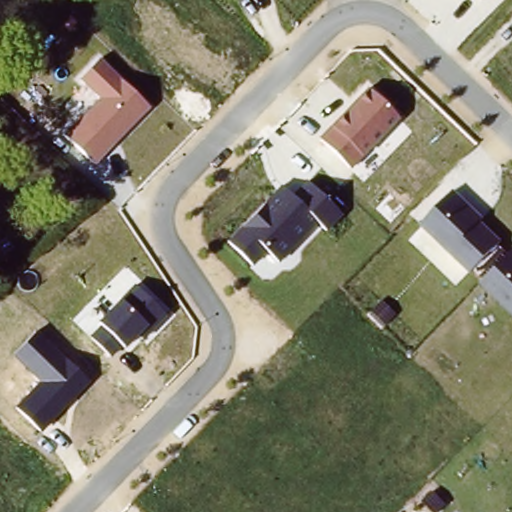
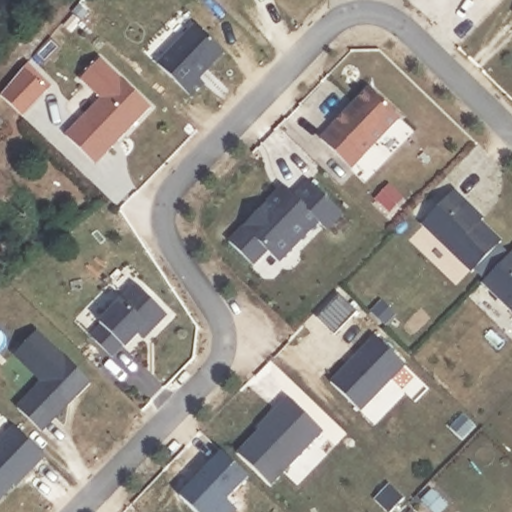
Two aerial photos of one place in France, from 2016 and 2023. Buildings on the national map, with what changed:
new [(198,26),(226,54),(201,80),(206,85),(194,98),(159,66),(198,26)]
unchanged [(149,107),(95,165),(64,133),(98,99),(79,78),(100,58),(149,107)]
unchanged [(399,118),(349,164),(319,135),(366,87),(399,118)]
unchanged [(266,202),(271,207),(288,190),(296,197),(313,182),(344,213),(327,230),(318,222),(279,263),(267,252),(254,266),(226,241),(266,202)]
unchanged [(453,187),(484,217),(482,221),(502,239),(469,273),(419,225),(453,187)]
unchanged [(13,244),(0,255),(0,238),(4,234),(13,244)]
unchanged [(512,254),(512,310),(484,282),(512,254)]
unchanged [(88,336),(102,323),(100,321),(136,285),(165,315),(144,339),(138,334),(126,348),(124,344),(110,357),(88,336)]
unchanged [(14,409),(39,381),(13,355),(38,330),(89,381),(39,432),(14,409)]
new [(362,412),(331,382),(375,335),(407,365),(362,412)]
new [(273,486),(238,453),(260,430),(258,428),(287,398),(322,431),(273,486)]
new [(463,414),(474,426),(461,439),(450,428),(463,414)]
new [(17,427),(48,457),(23,483),(20,481),(0,502),(0,445),(17,427)]
new [(251,478),(229,499),(239,509),(236,512),(200,512),(183,494),(225,452),(251,478)]

